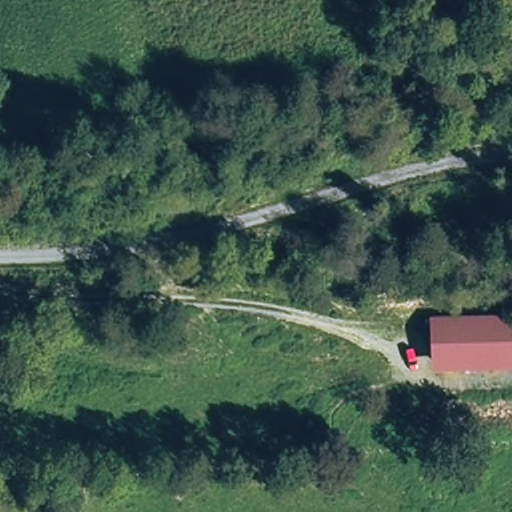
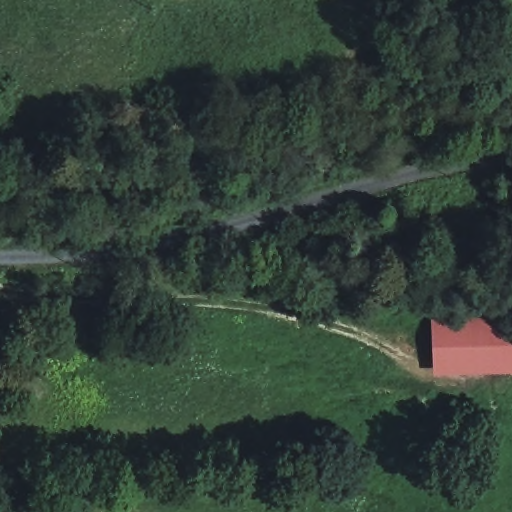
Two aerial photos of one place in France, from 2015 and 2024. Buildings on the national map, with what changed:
unchanged [(512,319),(512,373),(435,371),(432,318),(512,319)]

